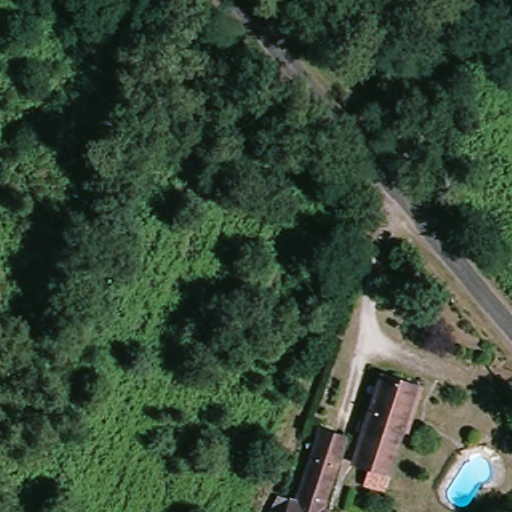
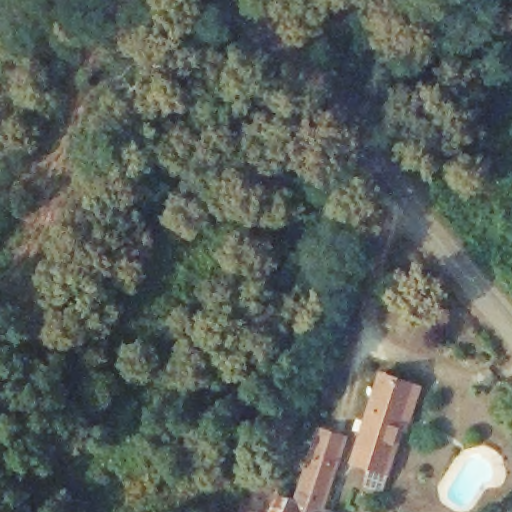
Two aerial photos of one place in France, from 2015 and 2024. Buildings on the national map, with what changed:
unchanged [(415,388),(390,471),(352,459),(377,377),(415,388)]
unchanged [(325,507),(335,511),(335,512),(265,512),(273,490),(294,497),(316,425),(349,433),(325,507)]

